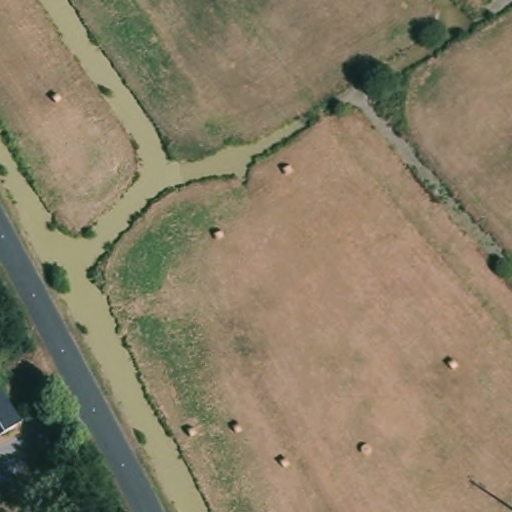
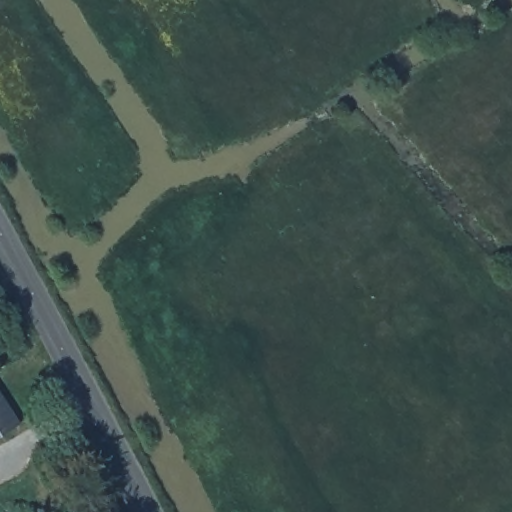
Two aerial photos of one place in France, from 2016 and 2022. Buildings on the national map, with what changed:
unchanged [(0,436),(0,396),(17,423),(0,436)]

